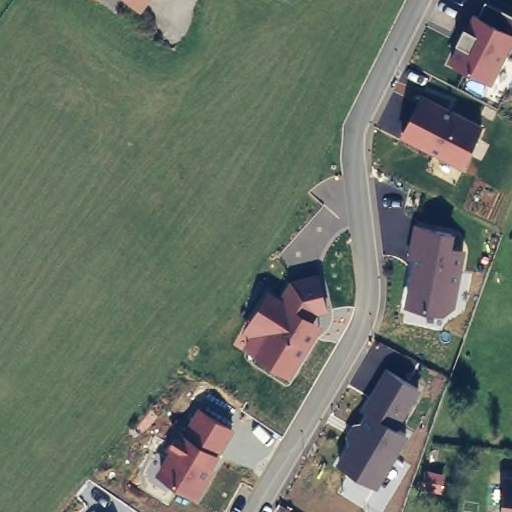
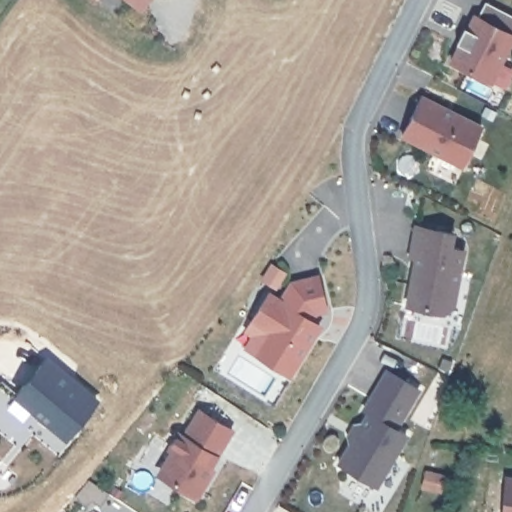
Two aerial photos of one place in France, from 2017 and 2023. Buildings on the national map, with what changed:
unchanged [(127,0),(142,0),(137,7),(127,0)]
unchanged [(474,12),(477,15),(483,2),(512,16),(512,45),(492,84),(449,61),(474,12)]
unchanged [(420,93),(482,126),(463,167),(402,136),(420,93)]
unchanged [(405,307),(413,261),(405,260),(411,224),(457,233),(453,250),(465,251),(453,309),(443,314),(405,307)]
unchanged [(250,339),(243,335),(268,291),(280,298),(289,281),(322,274),(330,310),(317,313),(313,319),(324,326),(292,378),(244,349),(250,339)]
new [(13,396),(48,357),(100,399),(65,440),(13,396)]
unchanged [(335,462),(347,444),(342,436),(350,424),(359,423),(365,411),(360,408),(385,370),(420,391),(396,429),(407,436),(377,487),(335,462)]
unchanged [(235,431),(212,469),(215,471),(197,499),(156,475),(197,410),(235,431)]
unchanged [(507,481),(512,481),(512,512),(506,512),(507,481)]

